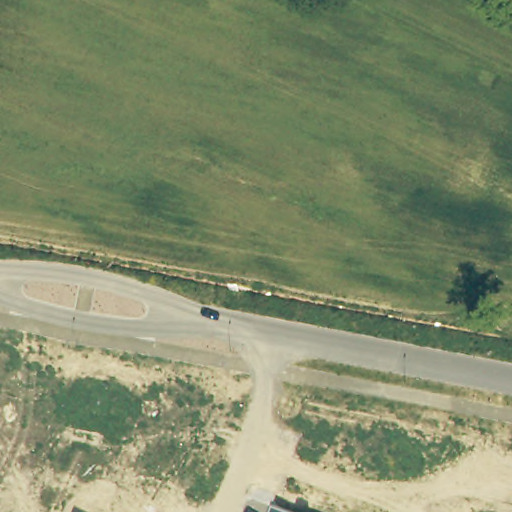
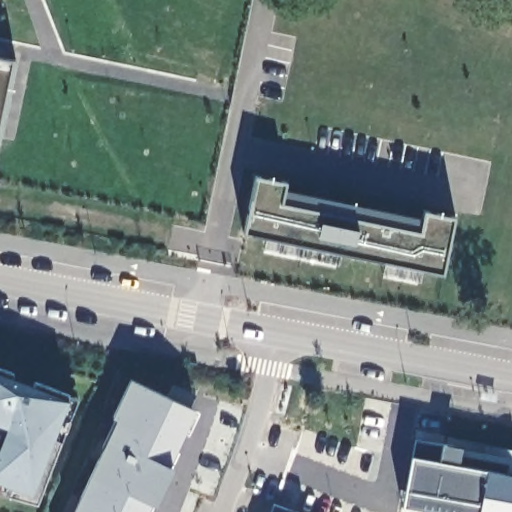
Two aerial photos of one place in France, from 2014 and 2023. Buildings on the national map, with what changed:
new [(0,60),(15,63),(0,141),(0,60)]
new [(444,274),(246,233),(257,177),(287,184),(285,191),(425,220),(425,212),(455,219),(444,274)]
new [(13,378),(29,386),(31,382),(79,400),(37,507),(0,496),(0,369),(16,375),(13,378)]
new [(459,466),(507,475),(508,473),(512,474),(512,512),(424,512),(402,508),(415,440),(462,448),(459,466)]
unchanged [(292,512),(273,512),(276,506),(292,512)]

